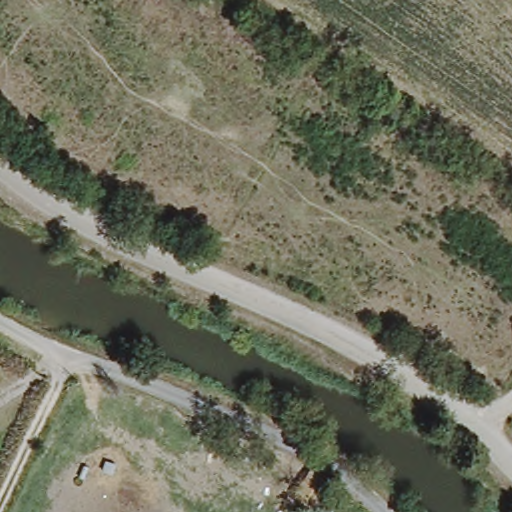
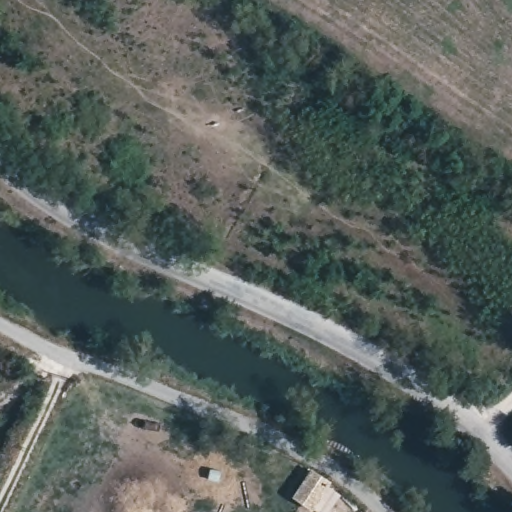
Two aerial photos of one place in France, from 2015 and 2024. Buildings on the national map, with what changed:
unchanged [(315,480),(328,489),(312,512),(311,512),(299,503),(315,480)]

